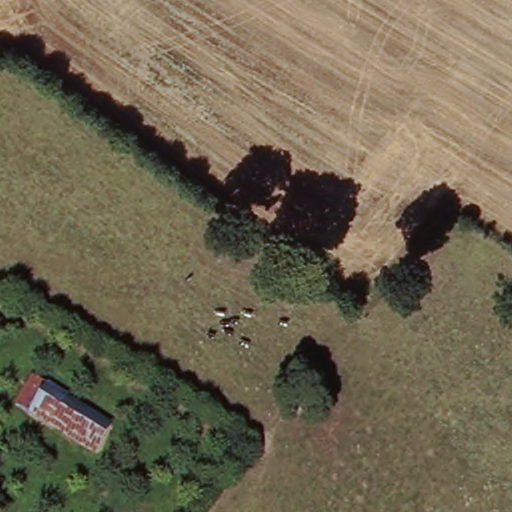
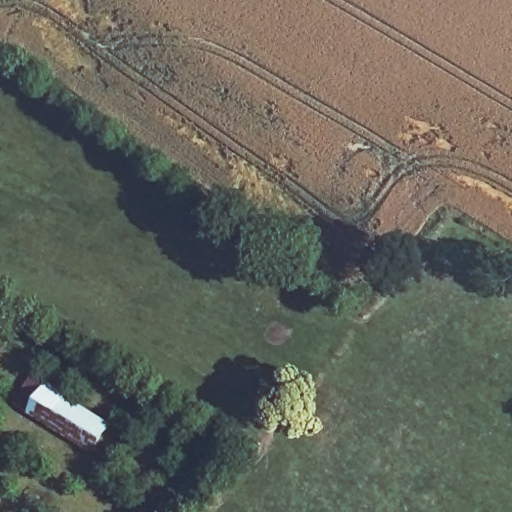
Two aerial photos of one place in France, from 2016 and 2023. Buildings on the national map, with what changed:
unchanged [(76,398),(75,402),(118,429),(101,457),(38,417),(25,409),(43,380),(56,388),(58,387),(76,398)]

